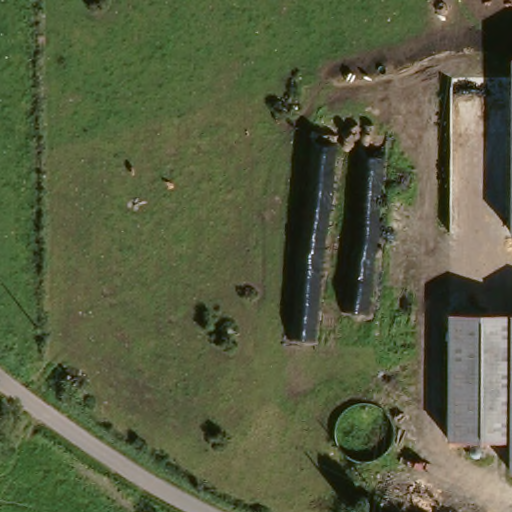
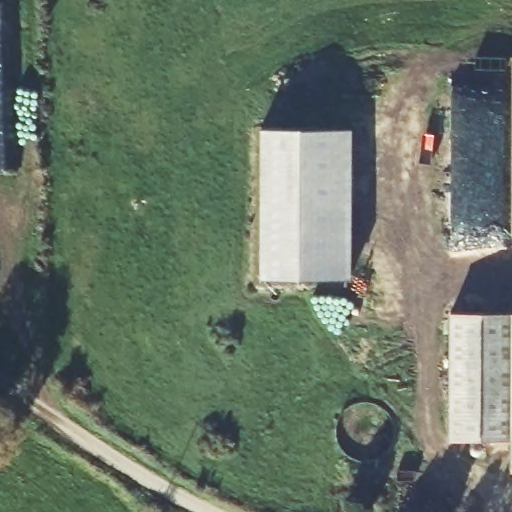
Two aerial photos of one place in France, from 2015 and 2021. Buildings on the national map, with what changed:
new [(351,130),(351,278),(260,277),(261,128),(351,130)]
unchanged [(506,451),(446,448),(449,316),(512,318),(512,477),(504,477),(506,451)]

